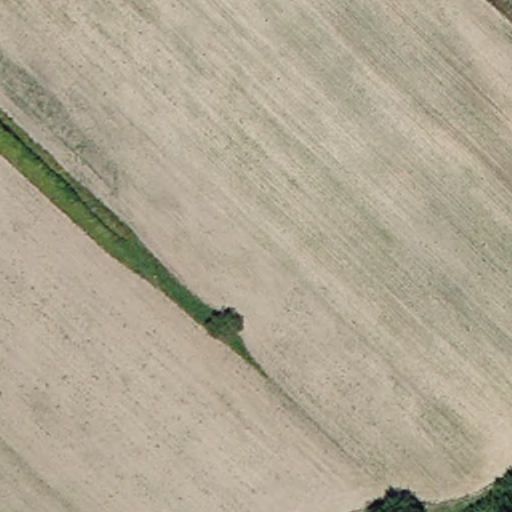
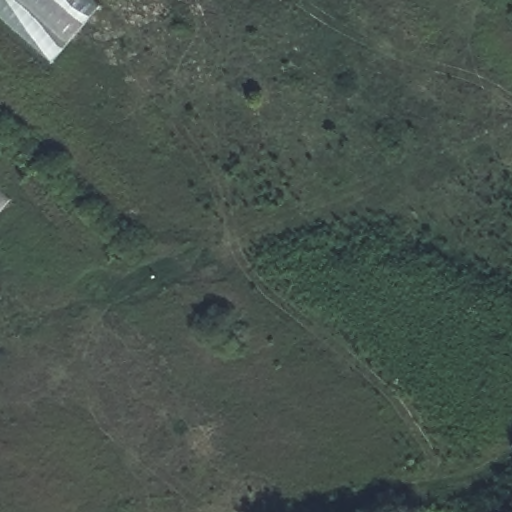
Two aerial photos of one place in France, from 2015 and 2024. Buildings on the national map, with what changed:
new [(94,0),(100,5),(51,62),(0,18),(0,0),(94,0)]
new [(0,213),(0,191),(11,201),(0,213)]

